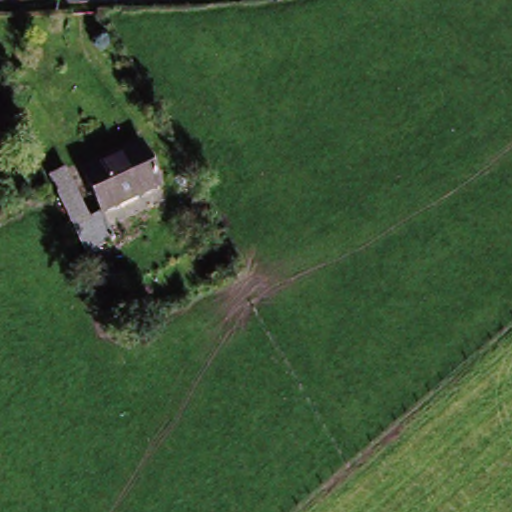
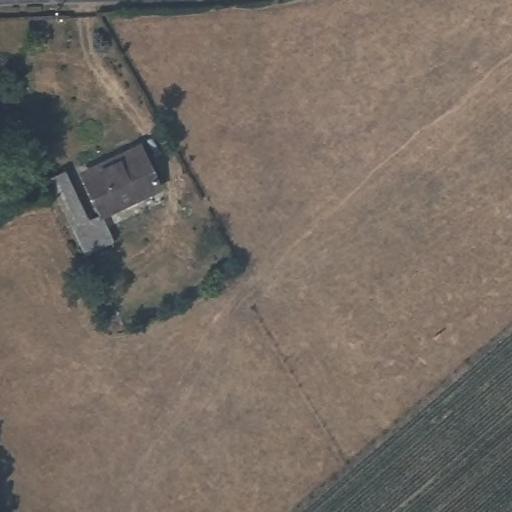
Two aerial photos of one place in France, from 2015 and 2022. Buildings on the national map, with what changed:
unchanged [(94,191),(148,163),(166,197),(113,226),(94,191)]
unchanged [(88,256),(47,180),(64,171),(91,221),(99,217),(113,243),(88,256)]

